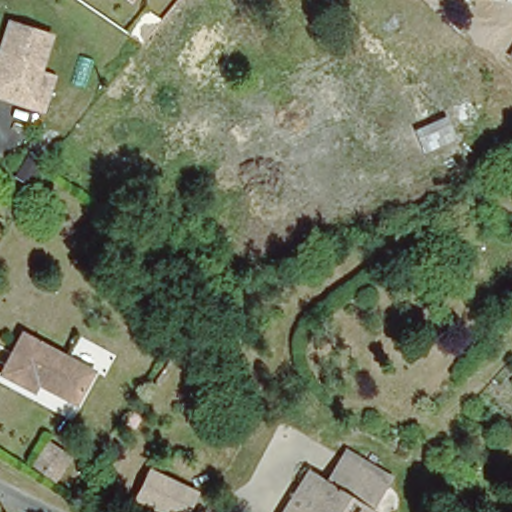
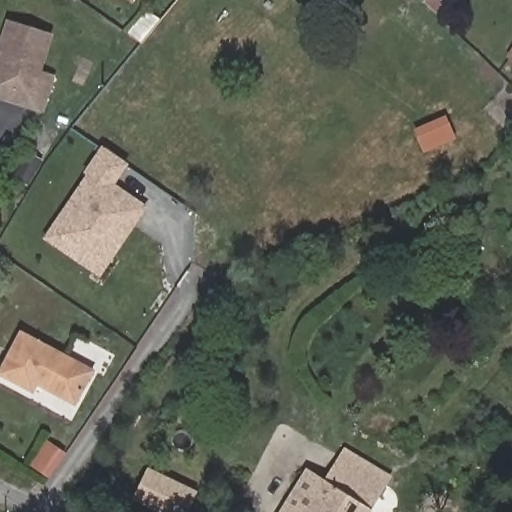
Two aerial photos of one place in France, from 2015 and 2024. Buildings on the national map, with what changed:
unchanged [(130,0),(136,0),(134,2),(130,0)]
unchanged [(0,33),(5,17),(48,31),(36,67),(50,72),(39,106),(24,101),(1,93),(0,93),(0,33)]
unchanged [(509,45),(512,40),(512,47),(509,45)]
new [(103,147),(128,164),(116,184),(149,207),(100,277),(44,239),(103,147)]
unchanged [(34,384),(30,392),(0,376),(0,369),(19,332),(89,371),(71,403),(34,384)]
unchanged [(53,474),(30,460),(44,439),(66,453),(53,474)]
unchanged [(309,471),(329,482),(343,458),(386,484),(369,512),(285,512),(288,507),(309,471)]
new [(157,512),(133,498),(148,466),(199,491),(189,512),(157,512)]

